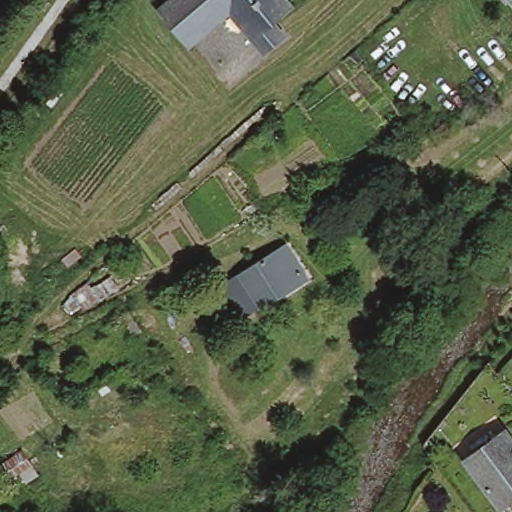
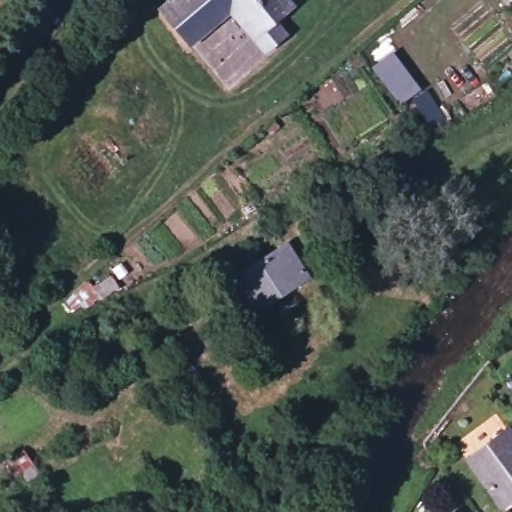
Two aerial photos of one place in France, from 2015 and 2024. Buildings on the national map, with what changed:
unchanged [(257,41),(252,34),(251,34),(228,6),(189,39),(161,5),(167,0),(283,0),(286,3),(292,10),(292,11),(257,41)]
unchanged [(511,0),(512,0),(512,1),(511,0)]
new [(399,104),(371,66),(392,51),(420,89),(399,104)]
unchanged [(270,129),(265,122),(274,115),(279,121),(280,122),(270,129)]
unchanged [(281,300),(260,310),(258,308),(241,317),(222,283),(289,248),(306,278),(309,284),(309,285),(282,299),(281,300)]
unchanged [(170,375),(161,380),(149,363),(151,362),(159,358),(170,374),(170,375)]
unchanged [(512,446),(512,494),(495,506),(456,451),(496,423),(512,446)]
unchanged [(0,465),(0,462),(26,442),(41,463),(14,483),(0,465)]

